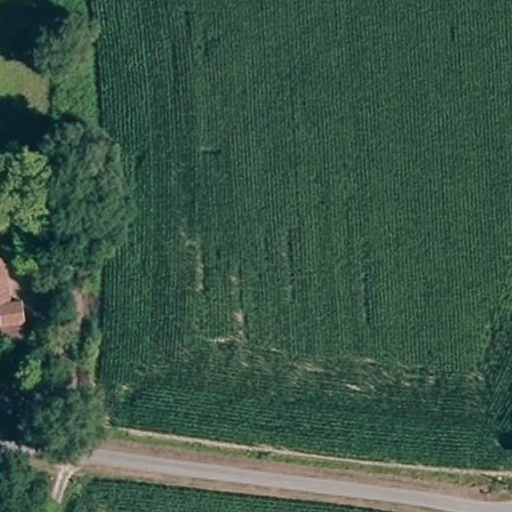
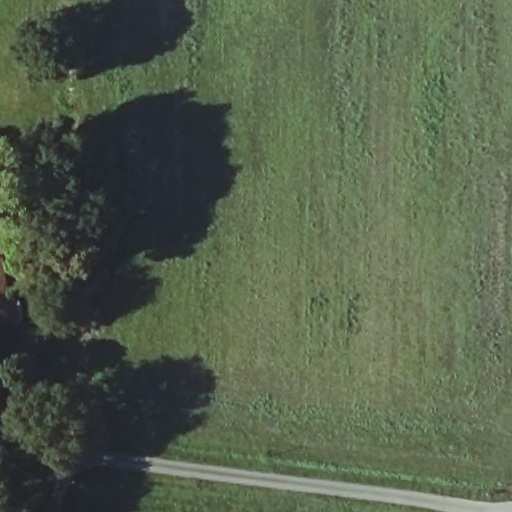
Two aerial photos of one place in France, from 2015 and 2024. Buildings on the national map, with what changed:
unchanged [(8,299),(31,296),(34,311),(11,317),(10,305),(0,307),(0,240),(3,239),(8,299)]

